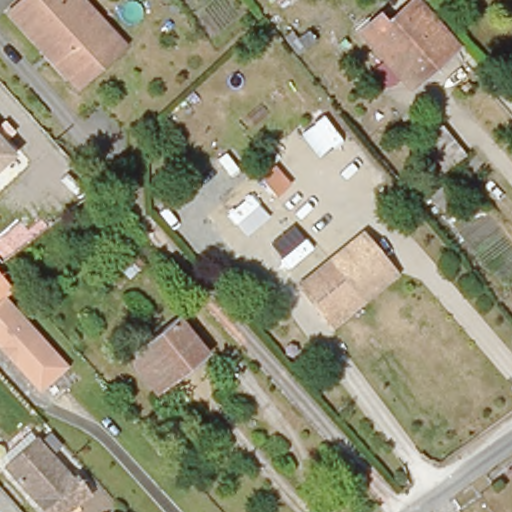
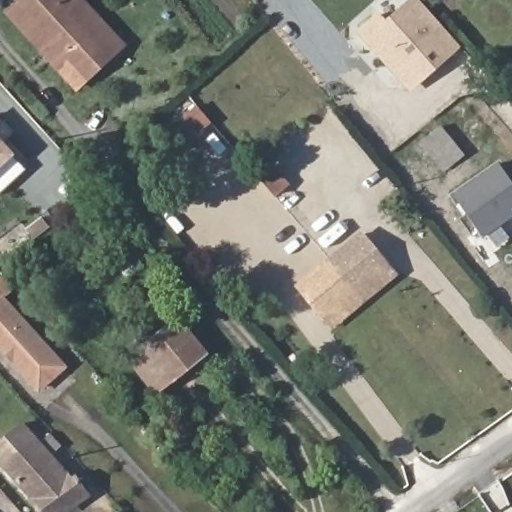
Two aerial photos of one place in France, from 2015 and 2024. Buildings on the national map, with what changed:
unchanged [(20,0),(82,0),(98,17),(86,27),(104,44),(68,76),(53,60),(45,52),(8,11),(20,0)]
unchanged [(276,0),(285,0),(280,4),(276,0)]
unchanged [(391,33),(419,9),(458,54),(460,55),(414,95),(365,40),(383,24),(391,33)]
unchanged [(123,44),(77,86),(68,76),(104,44),(86,27),(98,17),(123,44)]
new [(441,125),(465,155),(444,173),(419,143),(441,125)]
unchanged [(0,154),(0,141),(6,149),(0,154)]
new [(499,164),(512,182),(512,217),(500,226),(509,238),(494,249),(456,195),(499,164)]
unchanged [(327,320),(319,310),(294,276),(359,227),(384,260),(391,269),(327,320)]
unchanged [(134,247),(150,266),(122,291),(106,273),(134,247)]
unchanged [(9,307),(0,315),(0,276),(19,299),(9,307)]
unchanged [(45,397),(19,368),(22,365),(14,356),(11,360),(0,347),(0,315),(9,307),(70,375),(45,397)]
unchanged [(158,389),(146,376),(144,378),(128,361),(175,320),(204,353),(183,373),(161,392),(158,389)]
unchanged [(4,465),(35,437),(44,430),(92,484),(83,491),(60,512),(45,512),(4,465)]

